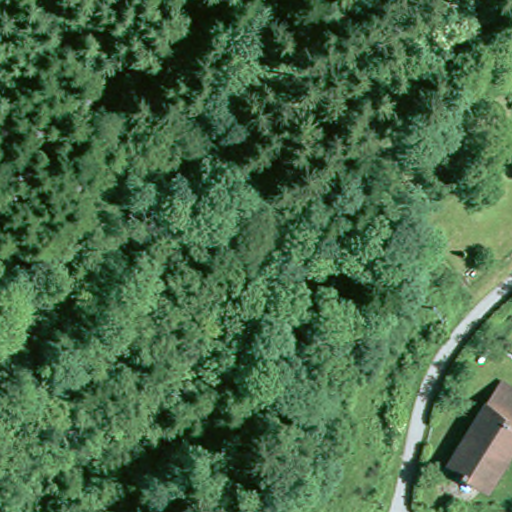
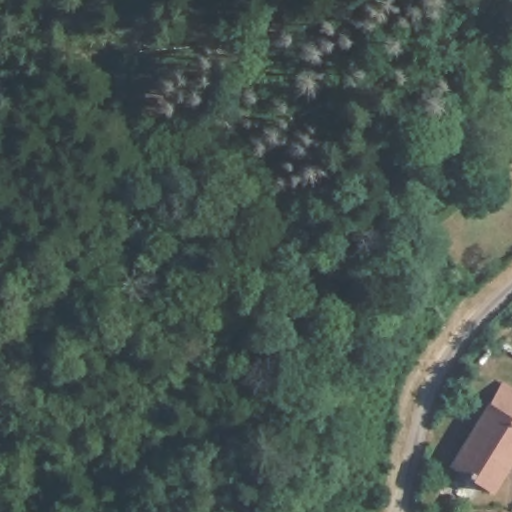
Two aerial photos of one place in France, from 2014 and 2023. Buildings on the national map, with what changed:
unchanged [(448,463),(503,385),(512,391),(512,454),(487,491),(448,463)]

